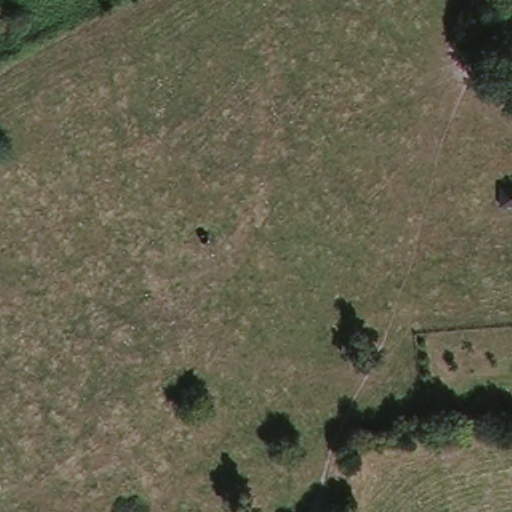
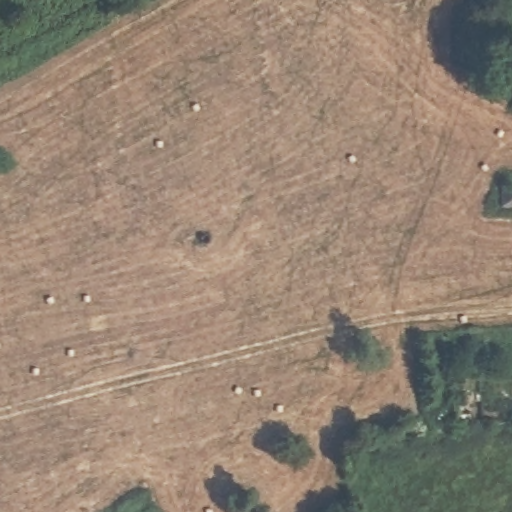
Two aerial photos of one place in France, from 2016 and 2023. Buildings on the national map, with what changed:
unchanged [(498,186),(512,186),(512,210),(497,210),(498,186)]

